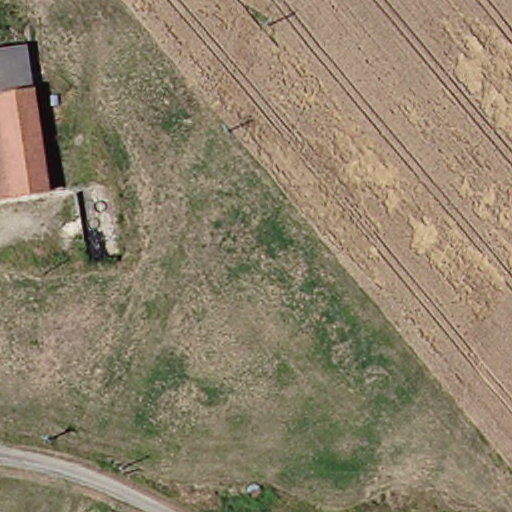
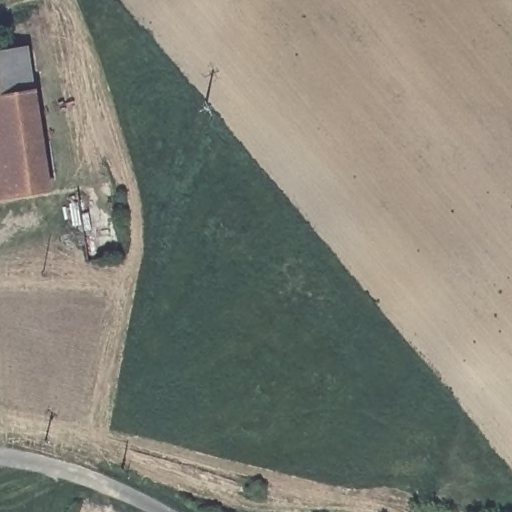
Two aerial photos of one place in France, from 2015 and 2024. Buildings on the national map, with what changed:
unchanged [(0,100),(0,54),(32,50),(38,97),(0,100)]
unchanged [(0,111),(0,100),(38,97),(52,197),(20,202),(8,112),(0,111)]
unchanged [(20,202),(0,204),(0,111),(8,112),(20,202)]

